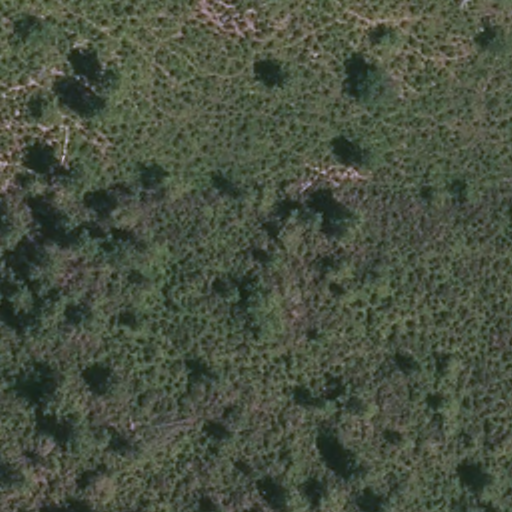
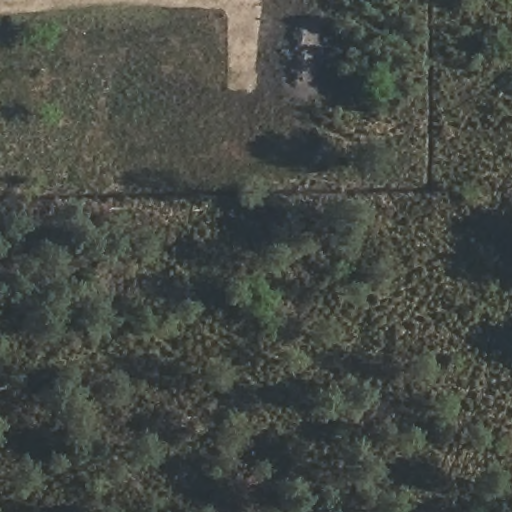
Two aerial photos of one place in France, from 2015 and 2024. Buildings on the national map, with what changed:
[]

